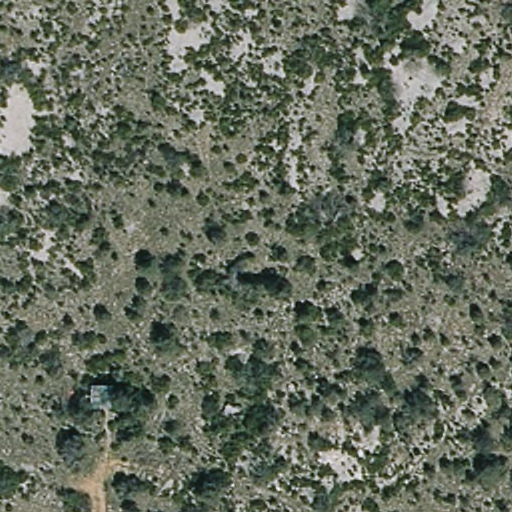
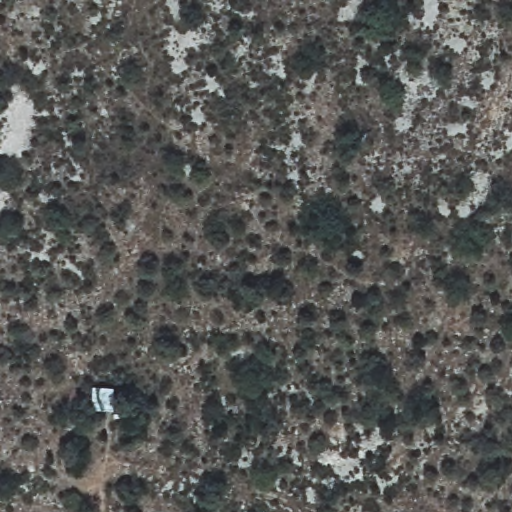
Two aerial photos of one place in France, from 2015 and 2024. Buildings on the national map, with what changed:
unchanged [(94,389),(118,389),(118,408),(91,408),(94,389)]

